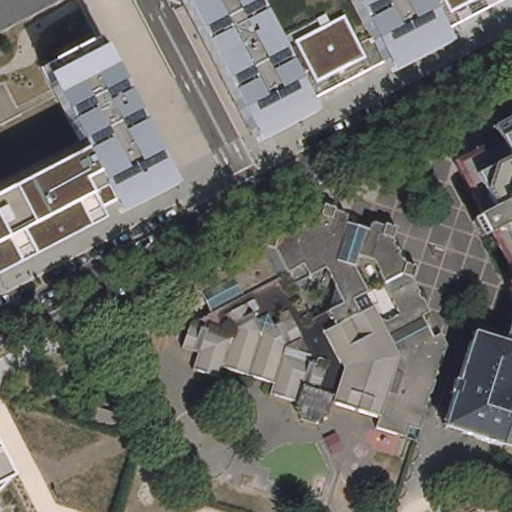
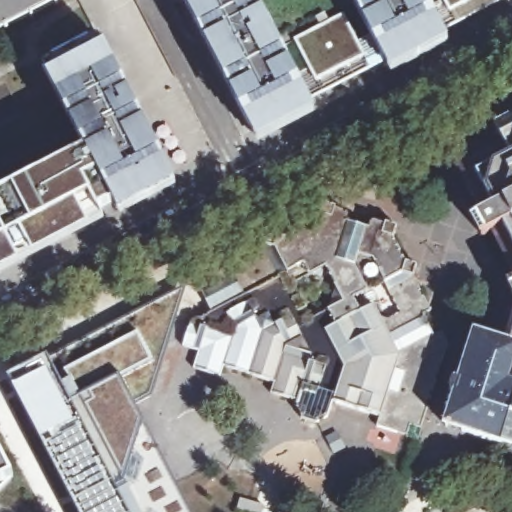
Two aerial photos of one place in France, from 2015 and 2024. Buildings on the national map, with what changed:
unchanged [(0,0),(70,0),(0,36),(0,0)]
unchanged [(181,0),(254,0),(262,18),(295,0),(512,0),(512,11),(315,116),(251,148),(181,0)]
unchanged [(0,198),(85,156),(45,76),(101,46),(176,189),(0,282),(0,198)]
unchanged [(497,232),(490,235),(487,234),(479,220),(480,217),(487,213),(477,193),(463,188),(462,185),(466,170),(458,156),(472,151),(475,141),(478,139),(478,135),(495,137),(505,133),(501,125),(512,119),(512,262),(497,232)]
unchanged [(419,277),(425,289),(427,288),(427,289),(428,289),(432,296),(431,296),(432,297),(430,298),(437,311),(433,312),(437,317),(435,318),(436,319),(429,322),(430,323),(428,324),(432,331),(433,330),(433,331),(440,327),(441,328),(442,328),(445,333),(447,332),(453,344),(447,364),(449,364),(448,365),(450,366),(447,372),(446,373),(444,372),(444,373),(442,373),(440,379),(442,380),(442,381),(443,382),(443,383),(444,383),(442,390),(440,390),(440,391),(438,391),(438,392),(436,391),(434,398),(436,398),(435,399),(437,400),(437,401),(438,401),(436,408),(433,408),(427,428),(424,440),(420,438),(420,439),(411,436),(412,435),(382,426),(382,424),(383,424),(385,418),(382,418),(383,416),(380,415),(380,414),(365,409),(365,410),(362,409),(362,410),(358,409),(358,408),(357,408),(357,407),(342,402),(342,403),(338,402),(337,405),(337,404),(333,414),(335,414),(333,417),(331,416),(323,420),(323,422),(322,423),(307,418),(307,416),(302,407),(300,406),(302,401),(280,394),(280,395),(276,393),(277,390),(275,388),(277,381),(258,375),(257,379),(256,380),(250,378),(250,377),(249,376),(250,372),(233,367),(230,375),(227,375),(225,377),(222,375),(203,369),(202,370),(199,369),(205,352),(188,346),(196,323),(195,321),(212,312),(211,307),(217,304),(217,303),(213,296),(212,296),(212,295),(207,298),(206,297),(205,298),(202,292),(202,293),(200,290),(188,286),(190,281),(191,282),(192,280),(190,279),(192,274),(204,278),(215,272),(214,271),(215,270),(215,269),(222,265),(222,266),(224,265),(223,264),(230,261),(231,262),(232,261),(233,263),(237,261),(235,259),(237,259),(236,258),(243,254),(243,255),(245,254),(245,253),(252,250),(254,251),(254,252),(268,244),(270,240),(271,240),(272,238),(270,238),(272,233),(277,235),(278,236),(279,235),(283,237),(290,233),(289,232),(290,231),(290,230),(297,227),(297,228),(298,227),(299,229),(300,228),(300,226),(300,225),(307,221),(307,222),(308,222),(310,223),(311,222),(310,221),(311,220),(310,219),(317,216),(318,217),(319,216),(320,218),(326,215),(327,210),(328,210),(330,208),(328,208),(330,203),(335,205),(335,206),(337,206),(337,205),(342,207),(340,209),(352,213),(353,214),(353,216),(352,216),(350,221),(354,223),(355,222),(359,223),(357,230),(365,232),(367,226),(372,227),(372,228),(375,228),(376,223),(377,222),(377,223),(379,221),(390,225),(391,223),(395,224),(395,225),(397,226),(397,225),(402,226),(398,238),(400,240),(402,239),(402,240),(402,239),(407,246),(405,247),(406,248),(404,248),(405,250),(407,249),(407,250),(408,250),(412,257),(411,257),(412,258),(410,259),(411,262),(415,263),(415,264),(417,265),(417,264),(422,265),(420,274),(419,277)]
new [(132,324),(153,371),(150,396),(132,405),(189,512),(76,512),(7,378),(132,324)]
unchanged [(510,438),(507,445),(482,438),(448,426),(480,330),(512,340),(512,438),(510,438)]
unchanged [(0,488),(0,455),(11,477),(0,488)]

